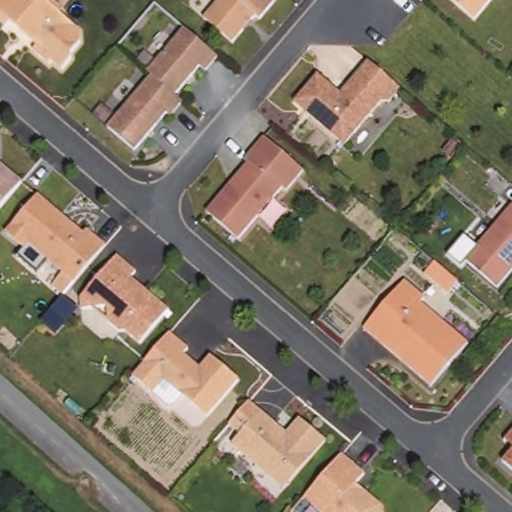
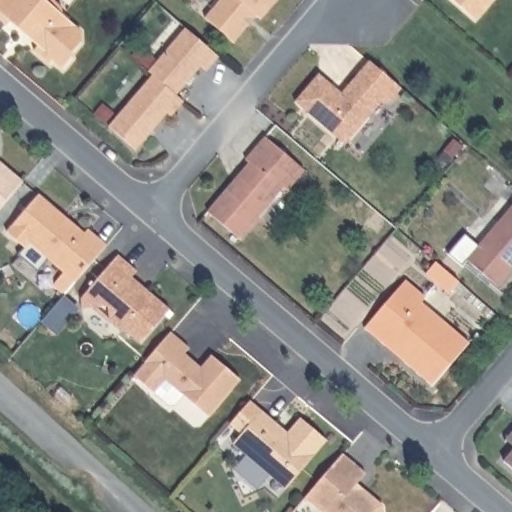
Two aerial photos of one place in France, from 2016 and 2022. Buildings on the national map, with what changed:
unchanged [(61,12),(80,28),(80,39),(71,50),(71,55),(62,66),(52,58),(49,61),(33,48),(37,43),(9,20),(6,23),(0,18),(0,0),(55,0),(61,5),(61,12)]
unchanged [(272,0),(258,16),(253,11),(233,35),(207,11),(217,0),(272,0)]
unchanged [(454,0),(484,0),(471,15),(454,0)]
unchanged [(201,59),(176,89),(184,96),(171,110),(167,107),(135,146),(107,123),(141,84),(152,69),(148,66),(186,21),(219,50),(207,64),(201,59)]
unchanged [(375,101),(342,142),(293,101),(317,71),(339,91),(367,58),(402,89),(375,101)]
unchanged [(302,161),(284,182),(281,179),(235,234),(204,208),(246,156),(243,153),(263,129),(302,161)]
unchanged [(0,201),(0,160),(20,178),(0,201)]
unchanged [(73,278),(27,239),(23,244),(4,229),(36,191),(82,229),(85,225),(104,241),(101,245),(73,278)]
unchanged [(512,267),(496,285),(466,257),(512,205),(512,267)]
unchanged [(135,266),(129,272),(168,305),(139,338),(125,326),(119,326),(107,317),(106,302),(80,304),(80,293),(116,250),(135,266)]
unchanged [(428,293),(423,298),(471,338),(434,382),(366,326),(407,276),(428,293)]
unchanged [(169,328),(188,343),(184,349),(200,363),(211,350),(239,374),(208,411),(144,358),(169,328)]
unchanged [(282,432),(296,417),(321,439),(279,486),(231,445),(240,435),(228,427),(249,403),(282,432)]
unchanged [(512,424),(512,473),(499,462),(509,451),(498,441),(506,432),(512,424)]
unchanged [(338,449),(362,469),(353,479),(379,502),(380,512),(325,512),(302,492),(338,449)]

